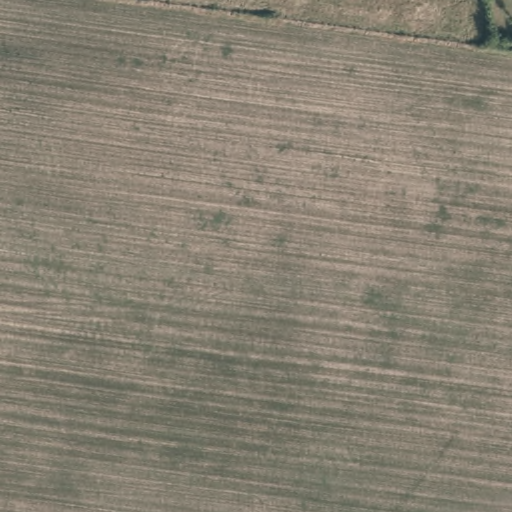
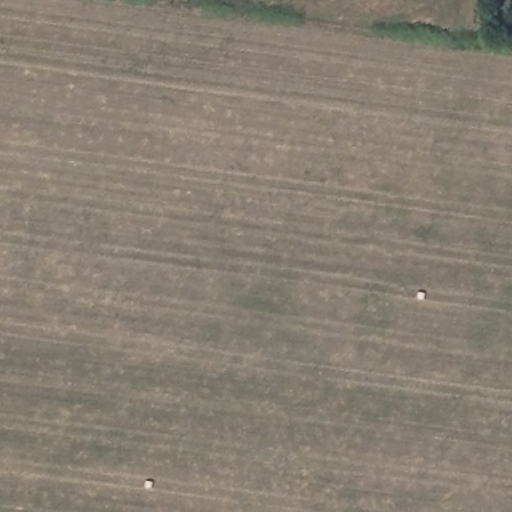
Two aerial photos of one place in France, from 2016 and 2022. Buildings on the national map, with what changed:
[]

